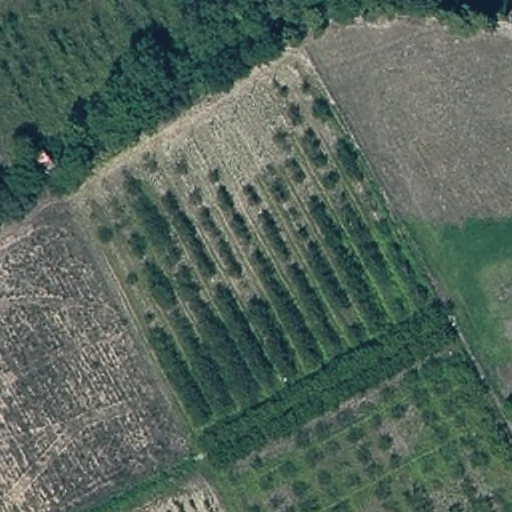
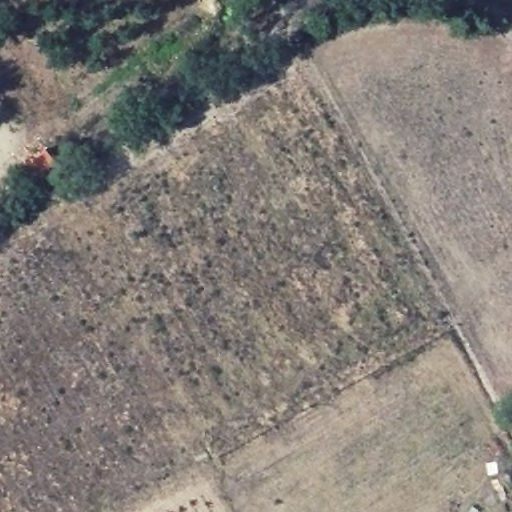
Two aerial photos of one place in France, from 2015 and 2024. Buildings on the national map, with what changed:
unchanged [(40,184),(37,186),(22,167),(44,149),(55,162),(60,169),(40,184)]

